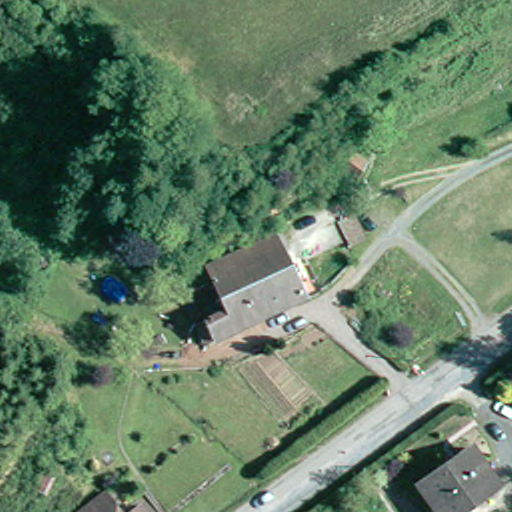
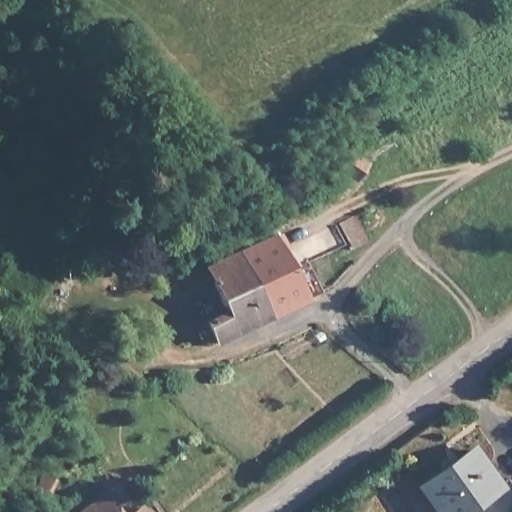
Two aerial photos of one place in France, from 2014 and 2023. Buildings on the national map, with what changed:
unchanged [(294,261),(310,296),(232,329),(208,335),(201,318),(232,302),(213,262),(266,234),(277,227),(285,241),(323,220),(334,239),(294,261)]
unchanged [(476,447),(498,482),(454,512),(443,512),(423,480),(476,447)]
unchanged [(131,512),(88,512),(117,492),(131,512)]
unchanged [(153,512),(137,512),(148,505),(153,512)]

